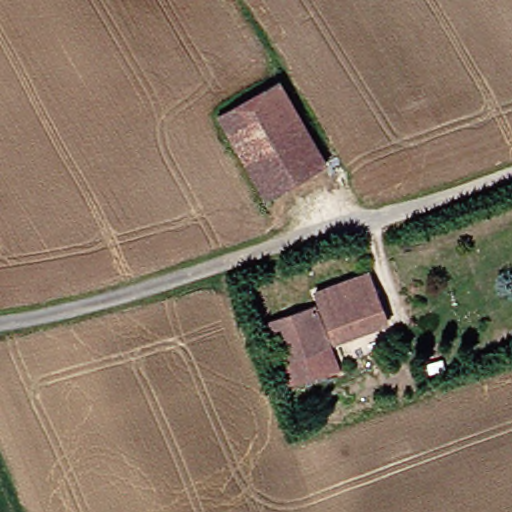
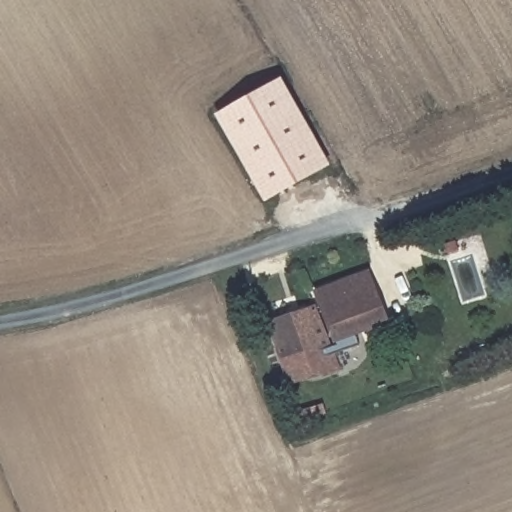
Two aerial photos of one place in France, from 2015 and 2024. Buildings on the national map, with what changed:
unchanged [(335,168),(272,198),(225,115),(288,80),(335,168)]
unchanged [(375,268),(398,319),(348,340),(323,288),(375,268)]
unchanged [(290,370),(272,327),(324,307),(342,348),(290,370)]
unchanged [(350,367),(298,387),(290,370),(342,348),(350,367)]

